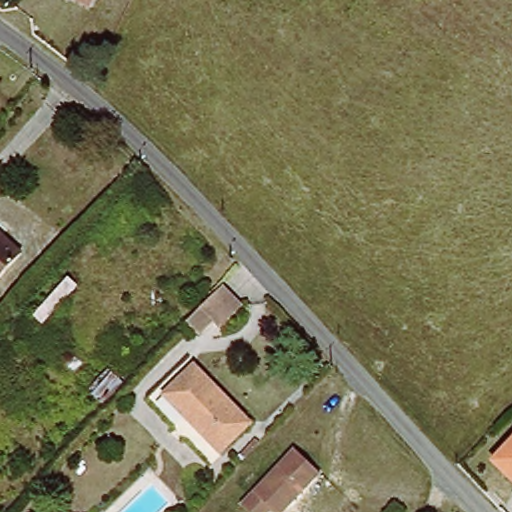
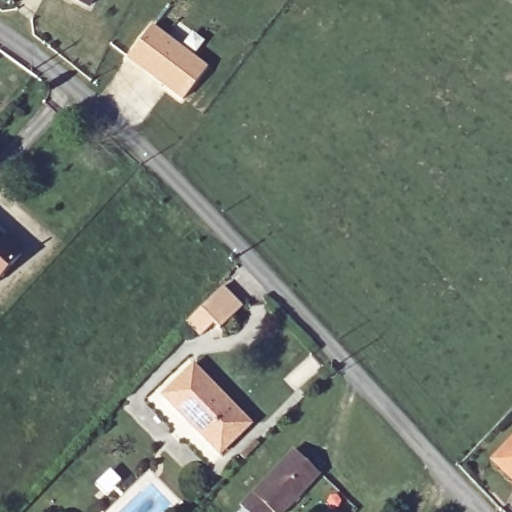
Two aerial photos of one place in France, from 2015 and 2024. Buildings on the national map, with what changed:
unchanged [(85,12),(59,0),(90,0),(85,12)]
new [(153,23),(180,44),(191,30),(205,41),(195,55),(210,67),(182,102),(126,58),(153,23)]
unchanged [(19,261),(0,280),(0,242),(19,261)]
unchanged [(220,331),(213,328),(204,337),(188,322),(222,289),(241,308),(220,331)]
unchanged [(160,399),(190,370),(247,428),(217,457),(160,399)]
unchanged [(491,454),(512,433),(512,473),(497,460),(491,454)]
unchanged [(322,469),(279,512),(256,512),(243,499),(297,445),(322,469)]

